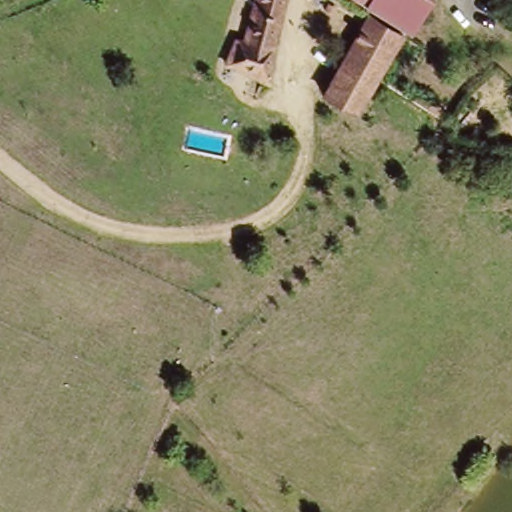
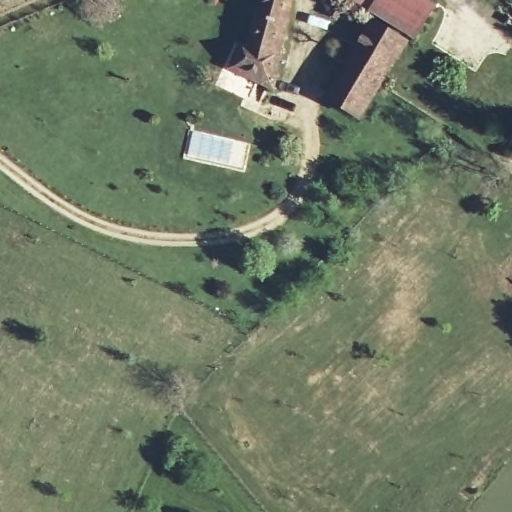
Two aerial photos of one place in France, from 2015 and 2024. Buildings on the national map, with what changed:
unchanged [(280,88),(235,68),(245,43),(253,44),(265,0),(295,0),(280,88)]
unchanged [(379,15),(357,0),(386,0),(379,15)]
unchanged [(415,37),(379,15),(386,0),(434,0),(437,2),(415,37)]
unchanged [(385,90),(368,119),(336,102),(378,26),(412,44),(385,90)]

